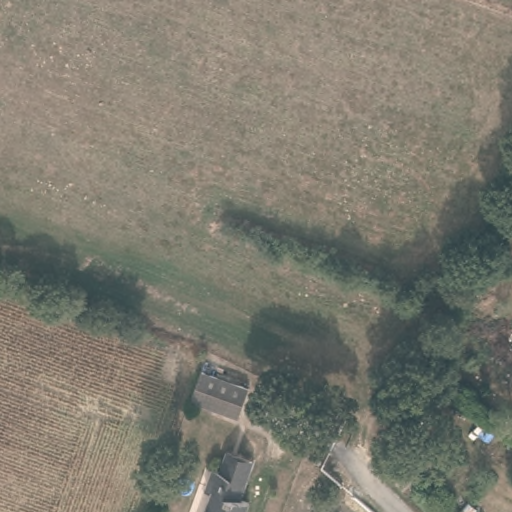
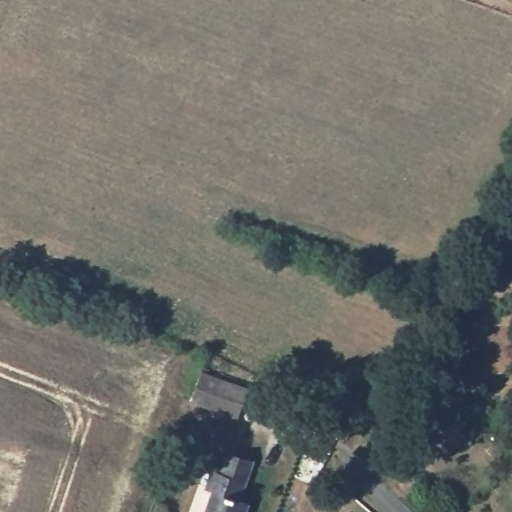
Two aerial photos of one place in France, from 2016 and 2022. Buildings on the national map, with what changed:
unchanged [(201,370),(246,386),(235,416),(189,402),(201,370)]
unchanged [(245,512),(204,512),(211,494),(202,490),(208,473),(218,475),(225,455),(252,465),(244,486),(238,503),(247,507),(245,512)]

